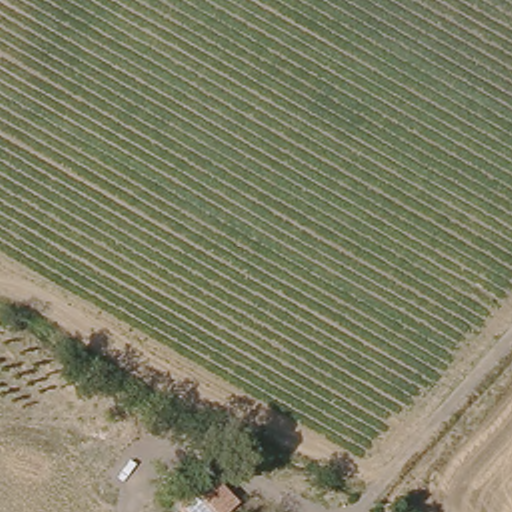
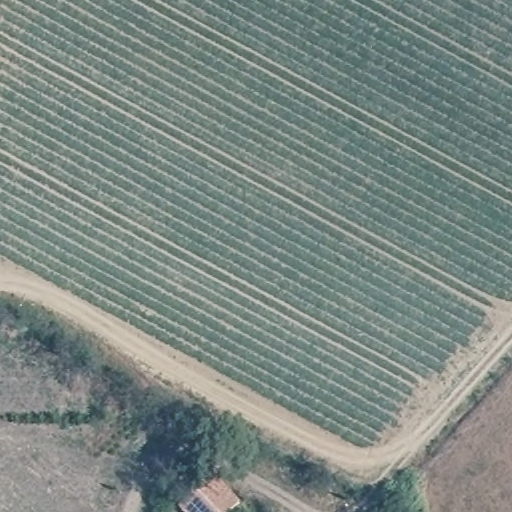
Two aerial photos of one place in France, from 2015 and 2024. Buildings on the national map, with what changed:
unchanged [(233,512),(185,512),(182,508),(215,478),(241,505),(233,512)]

